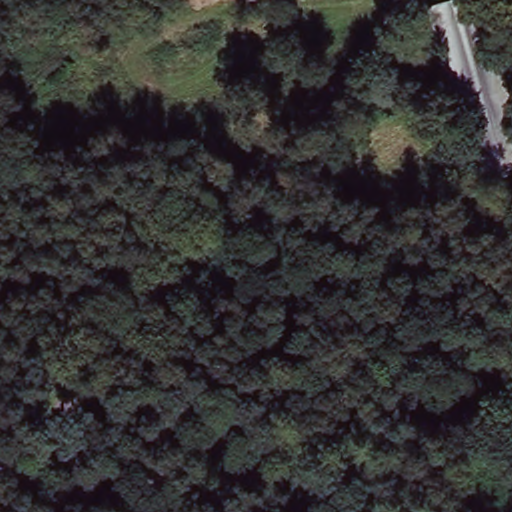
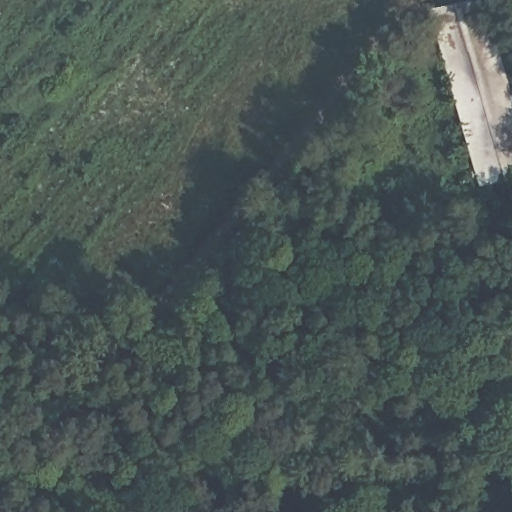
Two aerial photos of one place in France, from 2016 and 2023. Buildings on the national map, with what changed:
unchanged [(456,0),(479,0),(512,113),(512,175),(477,183),(427,7),(456,0)]

